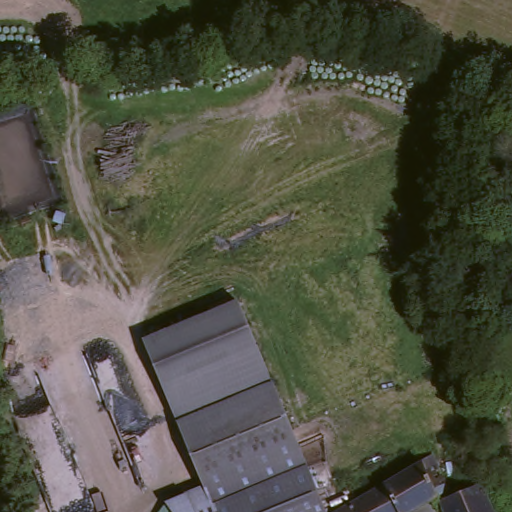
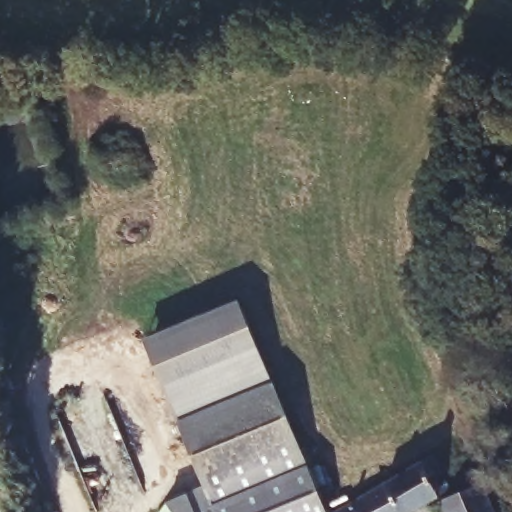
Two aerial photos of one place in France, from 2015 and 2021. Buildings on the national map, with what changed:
unchanged [(335,512),(229,512),(149,337),(249,299),(344,508),(335,512)]
unchanged [(444,499),(420,512),(335,512),(344,508),(439,457),(456,493),(492,478),(504,512),(449,512),(444,499)]

